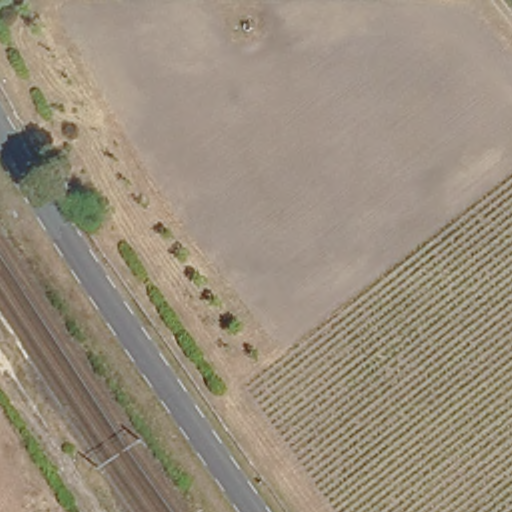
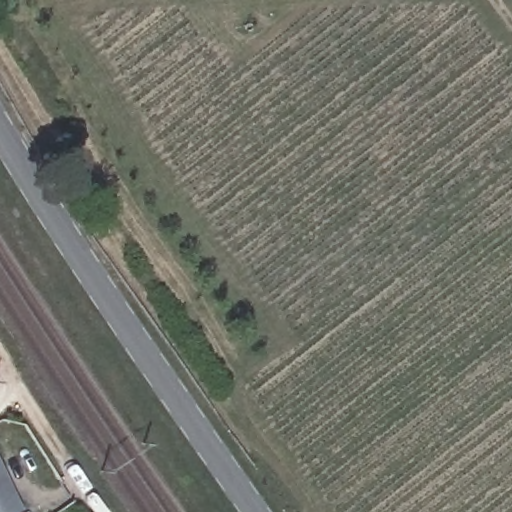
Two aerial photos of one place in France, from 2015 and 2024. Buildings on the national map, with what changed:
new [(20,510),(15,512),(0,512),(0,468),(20,510)]

